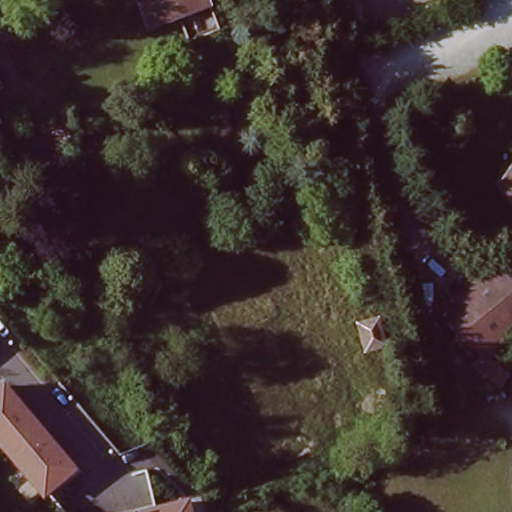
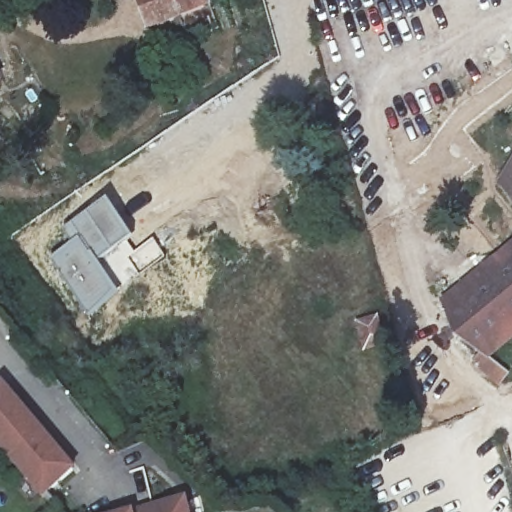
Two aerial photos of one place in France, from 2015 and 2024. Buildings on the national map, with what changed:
unchanged [(141,29),(133,0),(206,0),(208,7),(141,29)]
unchanged [(512,204),(492,181),(512,164),(512,204)]
new [(71,243),(63,232),(108,200),(135,239),(100,262),(121,293),(89,317),(50,260),(71,243)]
unchanged [(435,301),(512,238),(512,333),(482,357),(435,301)]
unchanged [(78,470),(46,498),(0,445),(0,384),(4,381),(78,470)]
unchanged [(193,512),(132,512),(133,512),(190,499),(193,512)]

